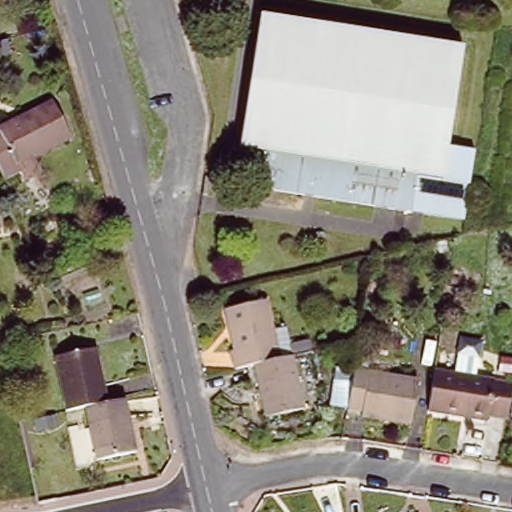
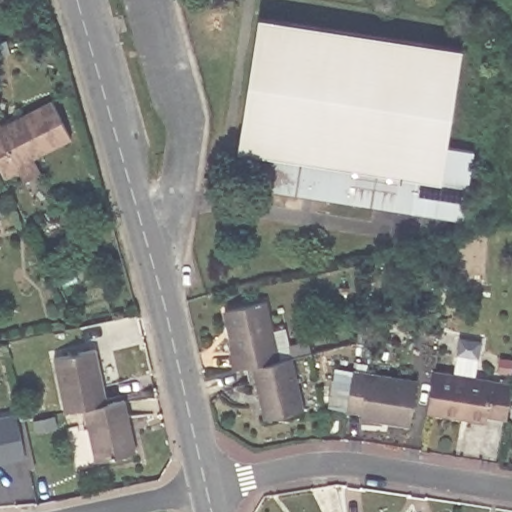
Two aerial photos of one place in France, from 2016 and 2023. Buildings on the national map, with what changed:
unchanged [(0,0),(5,0),(0,2),(0,0)]
unchanged [(260,15),(462,45),(447,146),(475,149),(464,220),(411,210),(260,187),(265,150),(241,146),(260,15)]
unchanged [(25,171),(8,179),(0,163),(0,137),(9,132),(26,124),(24,119),(56,103),(74,139),(38,156),(45,171),(29,179),(25,171)]
unchanged [(201,181),(208,182),(206,200),(199,199),(201,181)]
unchanged [(242,364),(238,345),(244,343),(235,303),(270,295),(283,355),(268,358),(260,360),(242,364)]
unchanged [(296,340),(312,336),(315,348),(299,351),(296,340)]
unchanged [(272,413),(260,360),(268,358),(283,355),(299,351),(311,404),(272,413)]
unchanged [(95,403),(72,408),(63,366),(105,357),(114,400),(95,403)]
unchanged [(506,412),(490,410),(489,415),(427,405),(432,365),(512,377),(506,412)]
unchanged [(408,421),(383,418),(382,423),(358,420),(359,416),(346,413),(330,411),(334,387),(349,390),(351,380),(413,390),(408,421)]
unchanged [(114,400),(133,396),(143,447),(105,455),(95,403),(114,400)]
new [(0,415),(17,411),(27,456),(0,464),(0,415)]

